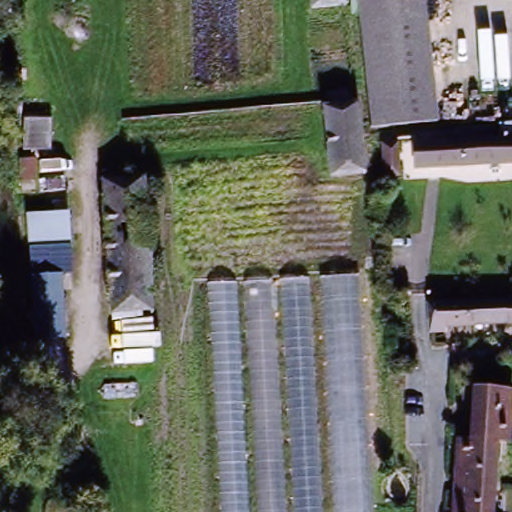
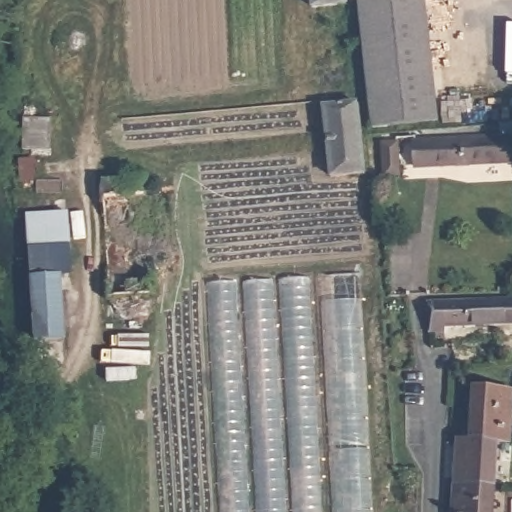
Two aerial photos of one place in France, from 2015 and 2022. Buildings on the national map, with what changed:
unchanged [(312,6),(312,0),(348,0),(348,5),(312,6)]
unchanged [(373,128),(354,0),(427,0),(442,119),(373,128)]
unchanged [(363,100),(368,172),(331,174),(325,102),(363,100)]
unchanged [(28,116),(55,116),(55,148),(28,148),(28,116)]
unchanged [(416,141),(436,140),(505,136),(504,121),(512,120),(512,161),(438,165),(417,166),(416,141)]
unchanged [(399,141),(400,174),(386,174),(385,143),(399,141)]
unchanged [(25,159),(39,158),(39,179),(25,179),(25,159)]
unchanged [(110,316),(110,299),(104,197),(103,182),(145,179),(146,195),(152,296),(153,314),(110,316)]
unchanged [(31,219),(48,218),(72,216),(74,248),(50,250),(33,251),(31,219)]
unchanged [(63,338),(50,338),(35,339),(30,277),(46,276),(60,275),(60,286),(63,335),(63,338)]
unchanged [(359,275),(374,512),(222,512),(209,284),(359,275)]
unchanged [(444,323),(445,326),(430,328),(428,299),(512,293),(512,318),(444,323)]
unchanged [(502,437),(475,436),(480,383),(512,385),(512,438),(502,437)]
unchanged [(463,435),(475,436),(502,437),(500,482),(460,480),(463,435)]
unchanged [(460,480),(500,482),(497,512),(458,512),(460,480)]

